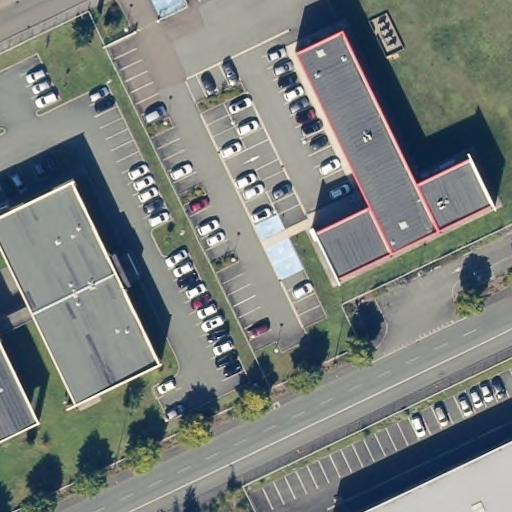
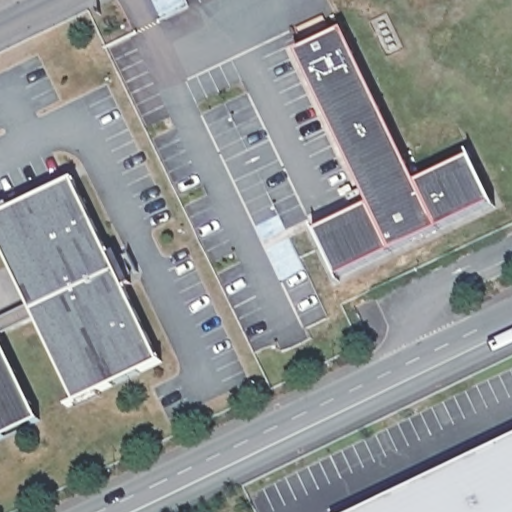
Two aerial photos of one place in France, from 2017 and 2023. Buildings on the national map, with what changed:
unchanged [(312,225),(316,233),(368,204),(295,51),(342,29),(416,182),(470,156),(467,151),(468,151),(495,208),(492,203),(337,278),(340,282),(339,283),(312,226),(312,225)]
unchanged [(0,243),(0,214),(73,179),(108,253),(116,250),(132,283),(124,286),(160,362),(76,402),(0,243)]
unchanged [(39,421),(0,440),(0,340),(39,421)]
unchanged [(512,438),(512,512),(357,512),(512,438)]

